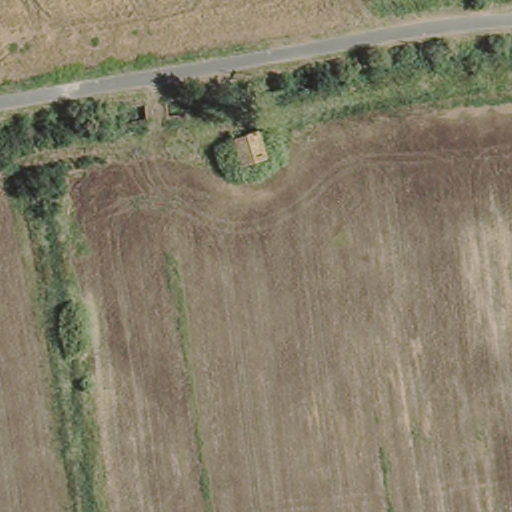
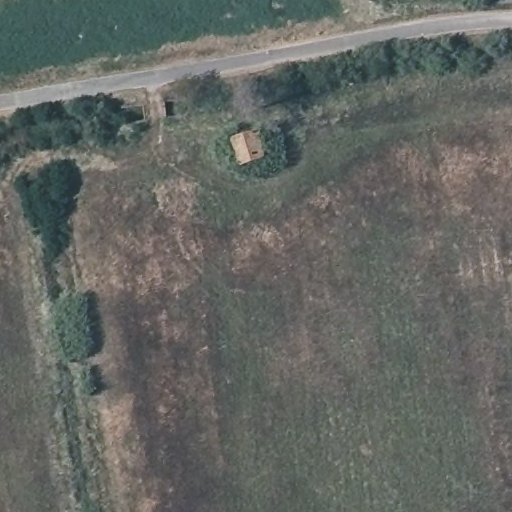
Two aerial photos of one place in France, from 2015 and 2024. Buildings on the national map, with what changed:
unchanged [(263,136),(272,164),(247,171),(238,144),(263,136)]

